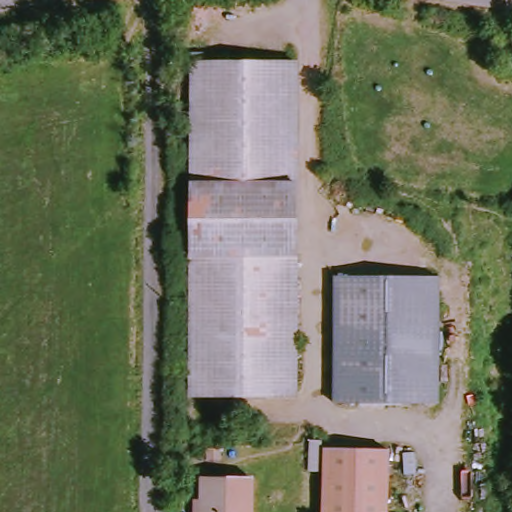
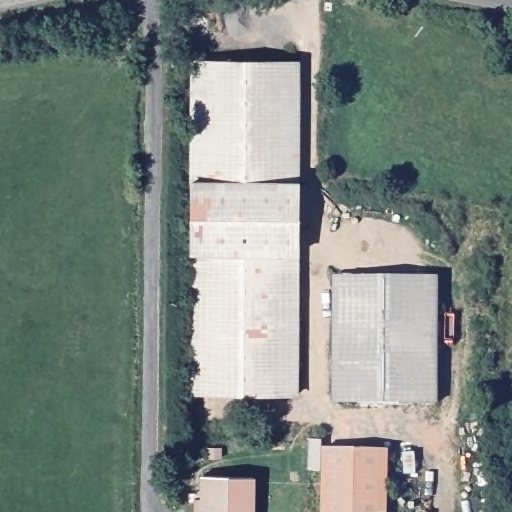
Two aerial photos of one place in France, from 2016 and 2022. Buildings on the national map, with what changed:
unchanged [(301,64),(298,394),(194,393),(196,62),(301,64)]
unchanged [(445,273),(443,400),(342,399),(344,272),(445,273)]
unchanged [(395,444),(392,512),(329,512),(332,442),(395,444)]
unchanged [(259,478),(257,512),(201,512),(203,493),(212,493),(213,476),(259,478)]

